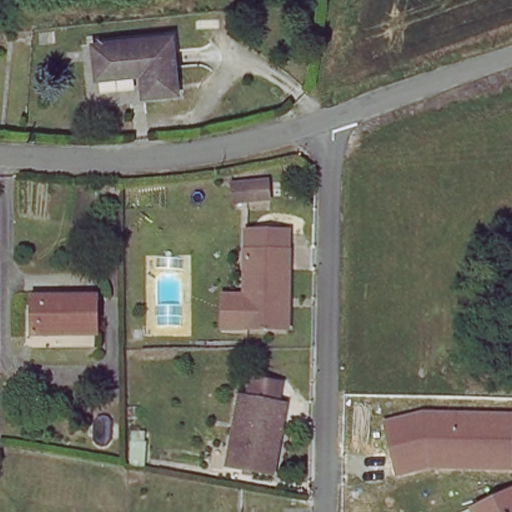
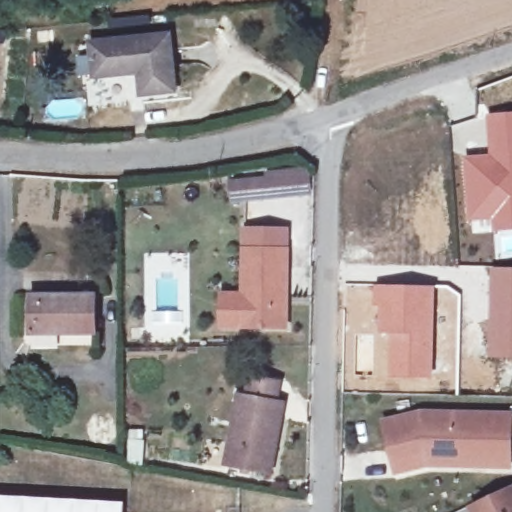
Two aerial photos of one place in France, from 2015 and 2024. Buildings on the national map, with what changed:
unchanged [(177,95),(141,100),(136,75),(93,80),(89,44),(170,34),(177,95)]
new [(486,113),(512,111),(512,228),(492,230),(491,220),(468,221),(463,155),(488,152),(486,113)]
unchanged [(275,194),(249,197),(248,180),(272,176),(275,194)]
unchanged [(281,329),(242,327),(244,250),(284,252),(281,329)]
new [(512,267),(512,357),(486,356),(489,266),(512,267)]
new [(373,283),(438,285),(460,293),(459,315),(437,314),(434,379),(387,377),(388,334),(376,334),(377,304),(373,304),(373,283)]
demolished [(188,336),(160,335),(156,285),(186,285),(188,336)]
unchanged [(97,333),(32,335),(30,297),(96,297),(97,333)]
unchanged [(242,390),(245,369),(281,375),(277,397),(287,398),(274,468),(221,459),(234,388),(242,390)]
unchanged [(400,476),(386,422),(424,411),(512,414),(512,474),(428,466),(400,476)]
unchanged [(468,507),(512,486),(512,512),(470,512),(468,507)]
new [(124,501),(123,512),(0,512),(0,499),(124,501)]

